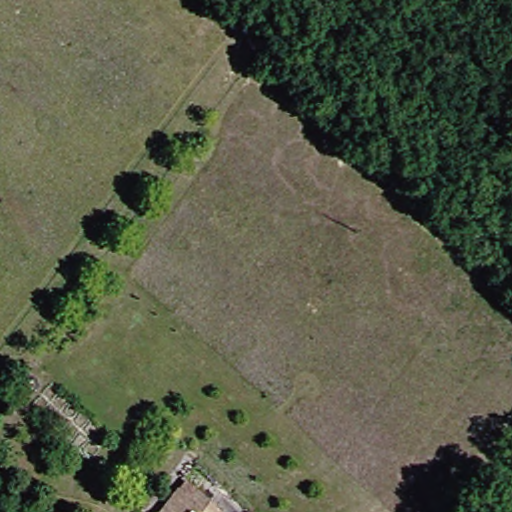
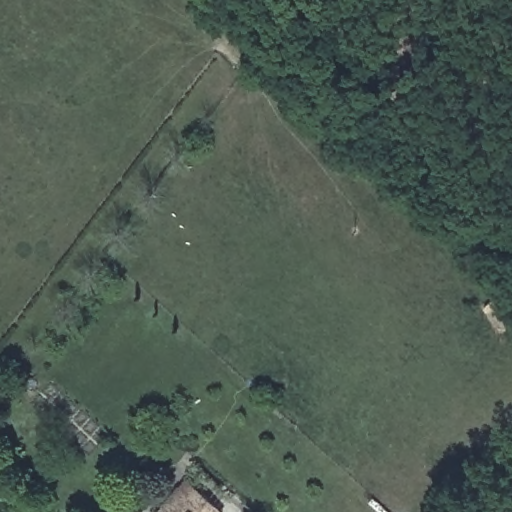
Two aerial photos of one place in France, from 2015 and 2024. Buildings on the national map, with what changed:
unchanged [(190,497),(198,488),(223,510),(221,512),(156,512),(174,488),(190,497)]

